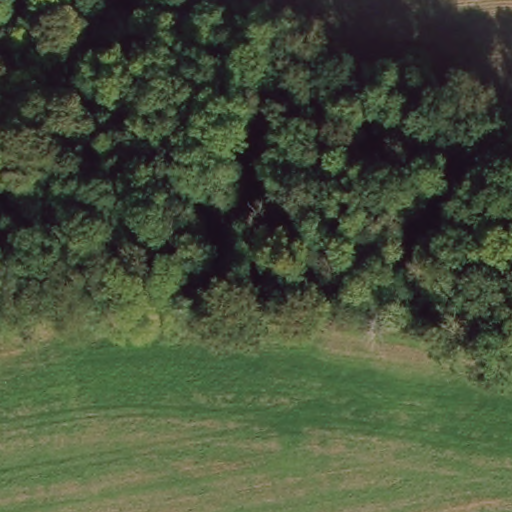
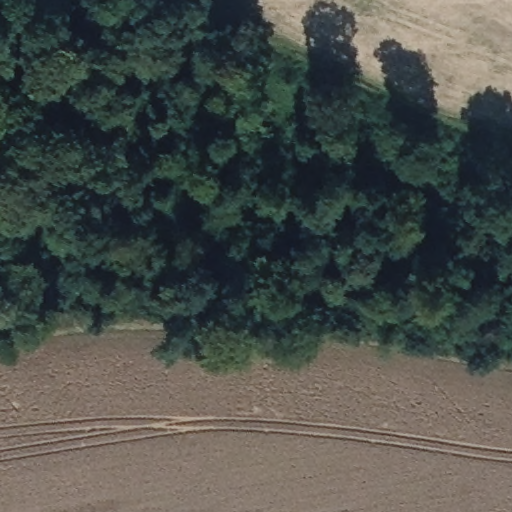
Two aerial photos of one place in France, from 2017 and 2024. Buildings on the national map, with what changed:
unchanged [(148,70),(138,58),(115,29),(132,16),(155,45),(165,57),(148,70)]
unchanged [(126,54),(133,61),(128,65),(123,57),(126,54)]

